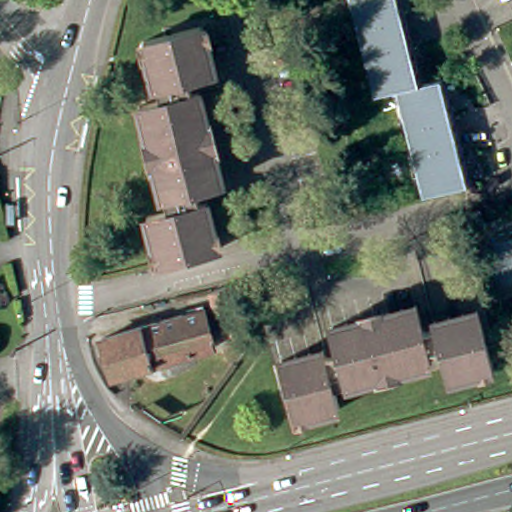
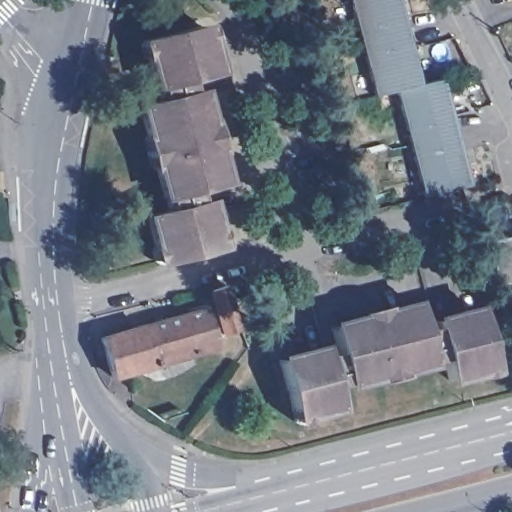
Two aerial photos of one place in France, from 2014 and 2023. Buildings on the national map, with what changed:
unchanged [(353,0),(404,0),(413,35),(365,47),(353,0)]
unchanged [(149,216),(170,211),(167,199),(165,200),(142,105),(164,100),(162,88),(160,88),(148,40),(205,26),(217,74),(192,80),(195,92),(200,91),(222,185),(197,191),(200,204),(205,202),(217,250),(161,263),(149,216)]
unchanged [(377,94),(365,47),(413,35),(425,82),(394,91),(377,94)]
unchanged [(394,91),(425,82),(442,79),(455,132),(407,144),(394,91)]
unchanged [(455,132),(468,185),(420,197),(407,144),(455,132)]
unchanged [(497,286),(486,240),(512,233),(512,282),(497,286)]
unchanged [(225,335),(212,292),(227,287),(242,330),(225,335)]
unchanged [(100,335),(204,306),(213,342),(192,348),(193,351),(112,374),(100,335)]
unchanged [(282,363),(325,352),(327,357),(338,353),(332,330),(416,307),(423,331),(435,328),(435,323),(478,312),(493,369),(450,381),(444,358),(432,361),(432,365),(348,387),(347,383),(335,387),(340,409),(297,421),(282,363)]

